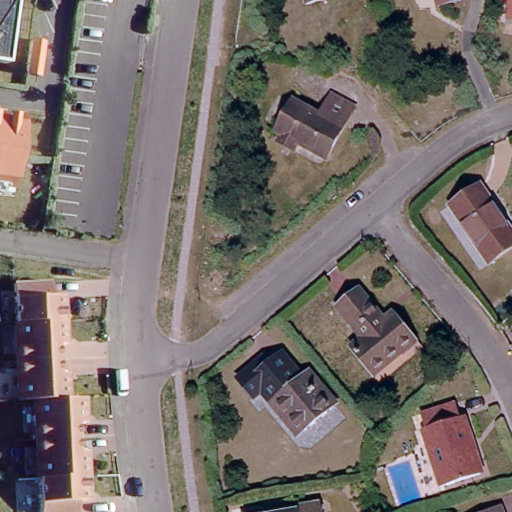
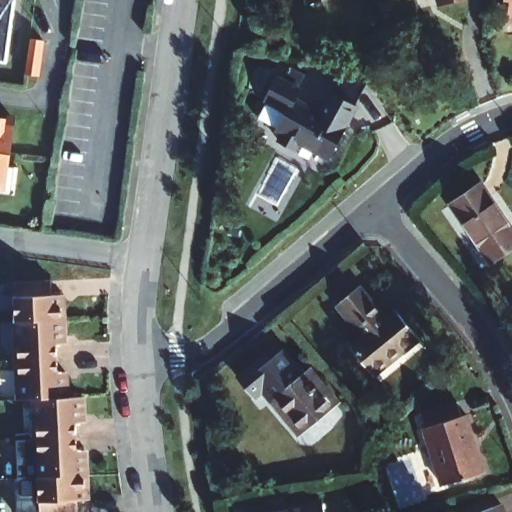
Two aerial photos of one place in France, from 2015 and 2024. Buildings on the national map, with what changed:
unchanged [(0,60),(0,0),(13,0),(5,61),(0,60)]
unchanged [(304,0),(326,0),(306,6),(304,0)]
unchanged [(507,0),(503,0),(512,0),(512,19),(504,18),(507,0)]
unchanged [(327,161),(311,152),(297,144),(291,153),(275,144),(280,135),(272,131),(287,102),(316,118),(331,90),(353,103),(337,131),(342,133),(327,161)]
unchanged [(11,187),(0,186),(0,116),(17,118),(11,187)]
unchanged [(512,234),(512,236),(482,256),(442,196),(474,176),(512,234)]
unchanged [(8,283),(45,281),(46,294),(55,293),(56,325),(10,318),(8,283)]
unchanged [(363,334),(339,301),(360,285),(384,317),(393,310),(415,339),(400,352),(397,349),(367,373),(347,347),(363,334)]
unchanged [(30,397),(13,398),(10,318),(56,325),(57,344),(48,344),(50,370),(58,370),(60,396),(75,395),(75,407),(30,401),(30,397)]
unchanged [(287,411),(273,394),(288,382),(280,371),(274,376),(264,363),(284,346),(303,370),(310,365),(322,380),(320,383),(333,401),(307,422),(301,427),(287,411)]
unchanged [(427,426),(422,408),(457,397),(462,415),(465,414),(472,438),(468,439),(480,473),(440,486),(422,427),(427,426)]
unchanged [(75,407),(76,419),(67,420),(68,450),(76,449),(77,467),(32,461),(30,401),(75,407)]
unchanged [(77,467),(79,498),(68,499),(68,512),(35,512),(32,461),(77,467)]
unchanged [(312,497),(315,512),(259,512),(258,509),(312,497)]
unchanged [(504,512),(469,512),(499,500),(504,512)]

